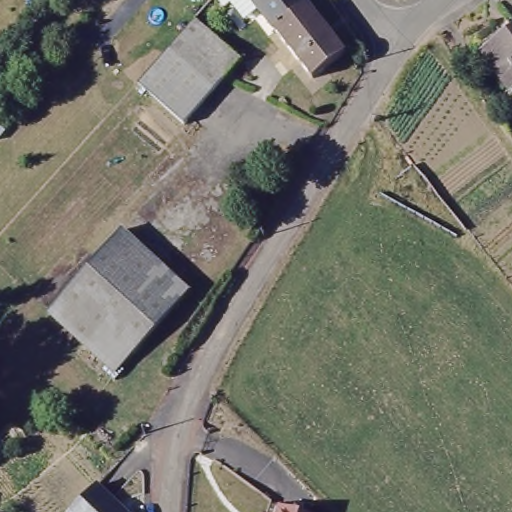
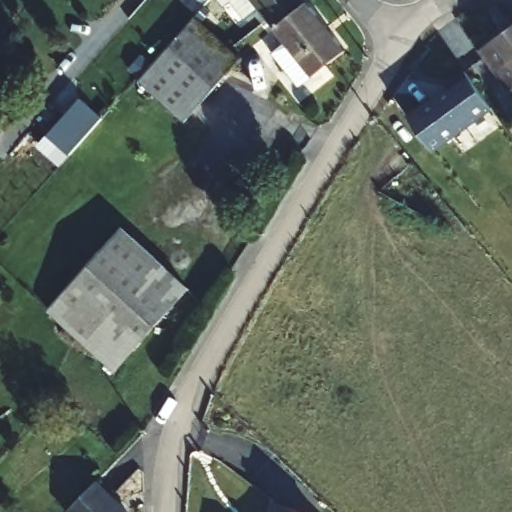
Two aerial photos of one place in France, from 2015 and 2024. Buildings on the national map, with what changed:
unchanged [(224,3),(221,0),(227,0),(224,3)]
unchanged [(274,24),(259,5),(244,15),(232,0),(307,0),(345,49),(312,74),(274,24)]
unchanged [(139,82),(202,7),(246,54),(182,120),(139,82)]
unchanged [(511,89),(488,57),(512,40),(512,90),(511,89)]
new [(312,79),(297,89),(272,55),(286,45),(312,79)]
new [(449,91),(447,87),(467,75),(492,111),(432,155),(410,119),(449,91)]
new [(40,150),(48,136),(81,100),(103,120),(60,167),(40,150)]
unchanged [(189,290),(116,370),(50,308),(122,229),(189,290)]
unchanged [(76,500),(95,480),(127,512),(67,512),(66,510),(76,500)]
unchanged [(294,512),(277,512),(278,508),(294,512)]

